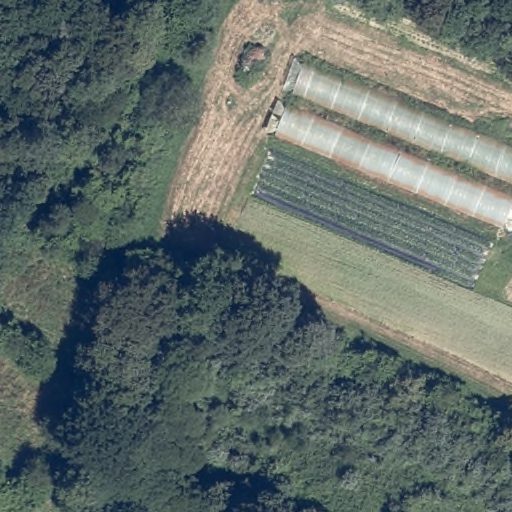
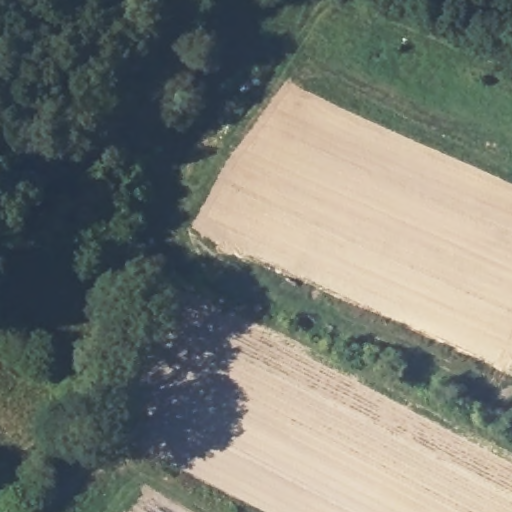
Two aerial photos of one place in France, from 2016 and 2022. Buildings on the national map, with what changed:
demolished [(274,137),(319,14),(512,87),(512,205),(503,228),(274,137)]

